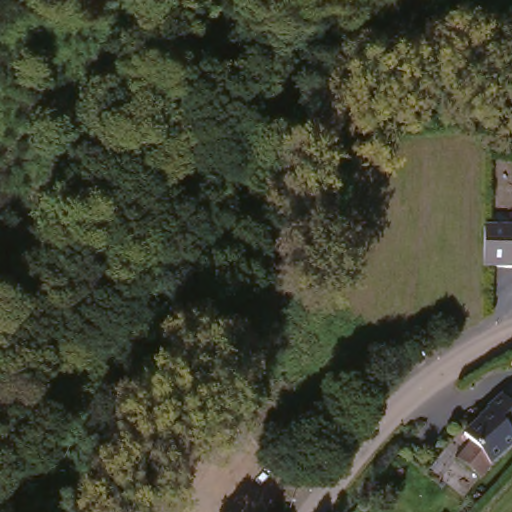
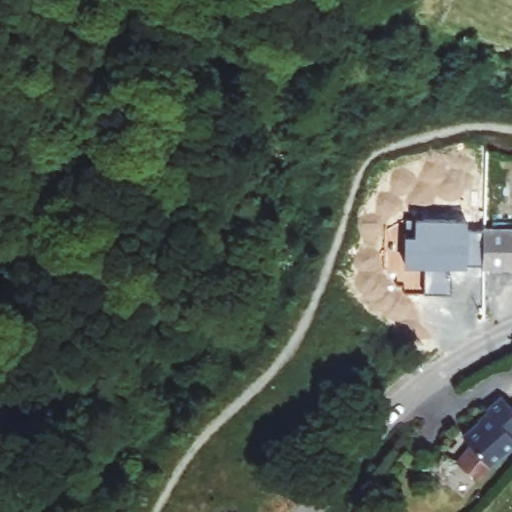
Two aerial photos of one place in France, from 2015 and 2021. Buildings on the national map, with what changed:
new [(404,220),(414,220),(464,220),(464,230),(483,229),(482,265),(464,265),(464,266),(446,266),(446,276),(451,276),(451,294),(423,294),(424,266),(404,266),(404,238),(404,220)]
unchanged [(512,228),(512,269),(482,268),(483,227),(512,228)]
unchanged [(463,468),(475,449),(466,441),(484,422),(486,424),(493,416),(489,411),(502,398),(512,408),(512,451),(493,469),(484,483),(463,468)]

